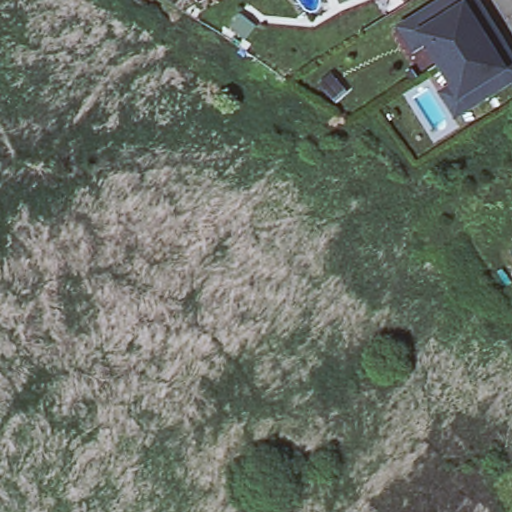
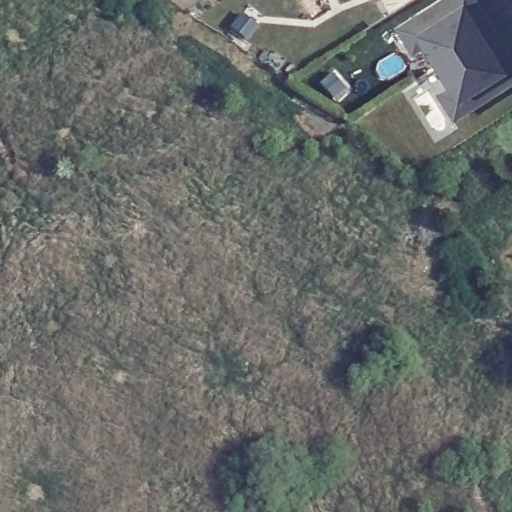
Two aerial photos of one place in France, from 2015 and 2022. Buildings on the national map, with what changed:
unchanged [(451,84),(425,42),(412,50),(398,26),(410,18),(438,0),(476,0),(477,2),(510,54),(512,57),(512,78),(512,79),(465,107),(453,115),(439,91),(451,84)]

